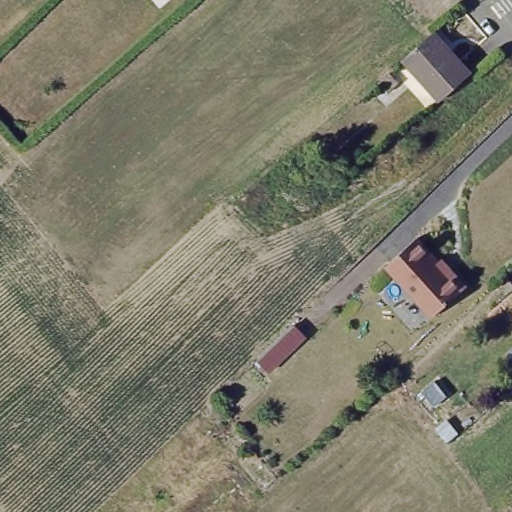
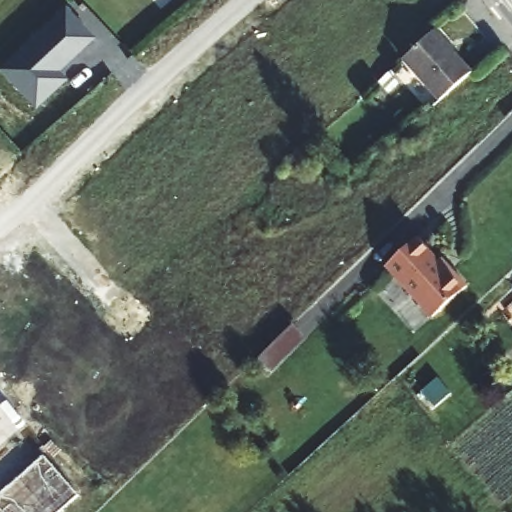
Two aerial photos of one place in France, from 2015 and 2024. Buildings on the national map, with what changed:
new [(0,66),(63,5),(94,38),(59,71),(67,79),(34,109),(0,72),(0,66)]
unchanged [(432,34),(469,75),(438,103),(402,61),(432,34)]
unchanged [(387,75),(395,84),(384,93),(375,84),(387,75)]
unchanged [(418,239),(449,274),(452,271),(467,288),(433,318),(387,267),(418,239)]
new [(258,360),(293,324),(305,338),(270,373),(258,360)]
new [(0,494),(44,456),(78,496),(60,512),(2,512),(0,509),(0,494)]

